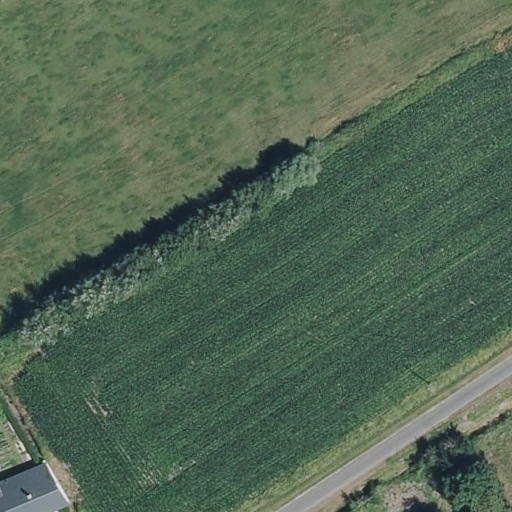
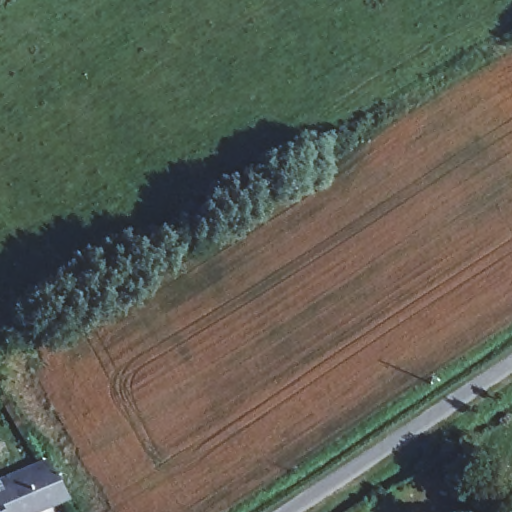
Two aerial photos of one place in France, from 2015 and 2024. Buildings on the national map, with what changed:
unchanged [(48,466),(70,505),(52,512),(0,512),(0,485),(48,466)]

